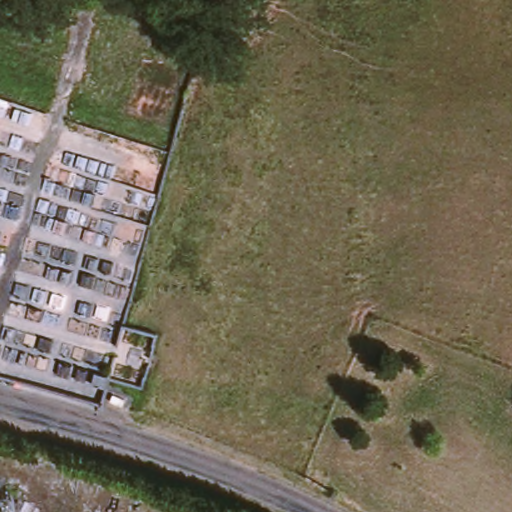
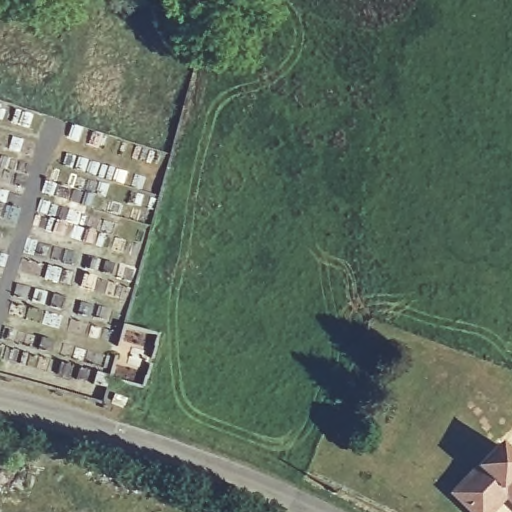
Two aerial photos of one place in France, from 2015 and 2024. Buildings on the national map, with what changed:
new [(512,464),(512,511),(499,498),(486,512),(462,512),(445,496),(492,445),(512,464)]

